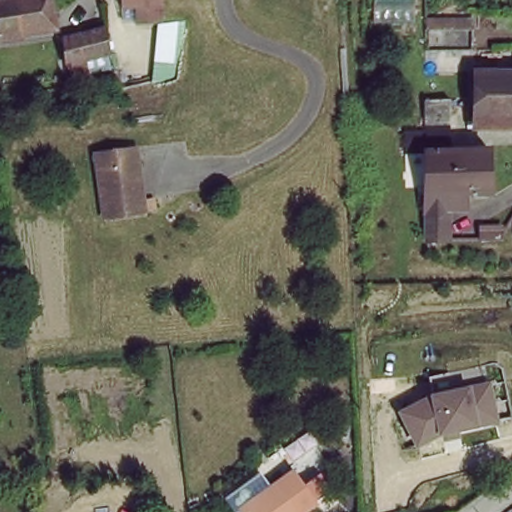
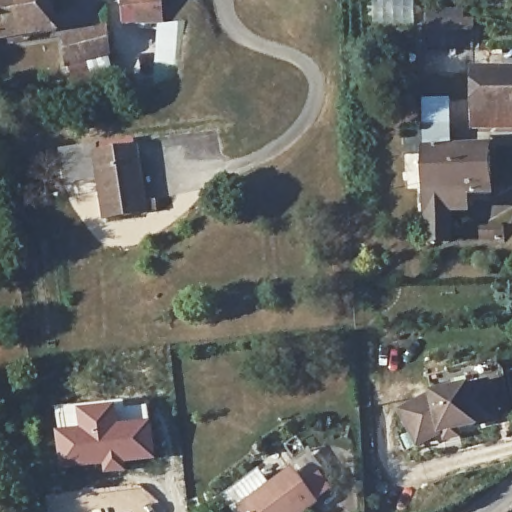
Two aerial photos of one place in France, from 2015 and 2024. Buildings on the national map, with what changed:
unchanged [(52,25),(0,33),(0,0),(48,0),(52,25)]
unchanged [(162,7),(163,16),(132,20),(130,5),(113,7),(112,0),(161,0),(161,1),(162,7)]
new [(179,22),(174,86),(153,86),(158,24),(179,22)]
unchanged [(111,68),(96,70),(95,59),(78,61),(81,78),(65,81),(58,41),(105,30),(111,68)]
unchanged [(469,77),(512,77),(512,121),(470,120),(469,77)]
unchanged [(448,100),(448,150),(426,150),(426,99),(448,100)]
unchanged [(132,147),(144,209),(105,216),(94,155),(132,147)]
unchanged [(426,243),(426,209),(426,196),(426,150),(448,150),(490,150),(491,192),(463,193),(463,197),(461,201),(457,204),(452,205),(448,204),(445,200),(445,210),(445,241),(426,243)]
unchanged [(428,391),(467,385),(492,380),(499,423),(478,428),(436,437),(416,447),(396,411),(428,391)]
new [(117,405),(120,425),(150,421),(156,462),(125,466),(126,472),(103,476),(101,468),(60,475),(54,410),(117,405)]
unchanged [(308,500),(292,512),(236,512),(234,510),(284,470),(308,500)]

